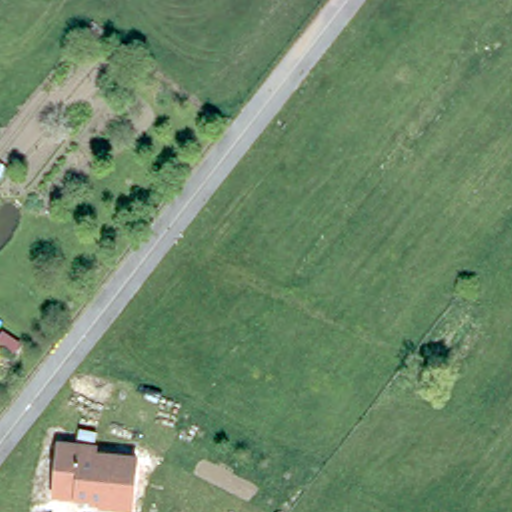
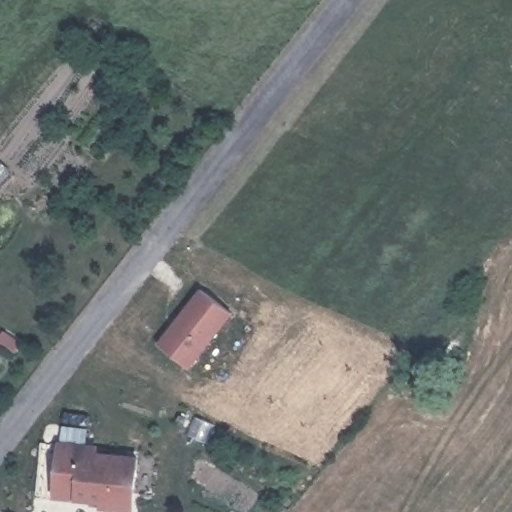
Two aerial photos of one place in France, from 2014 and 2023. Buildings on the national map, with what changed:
new [(154,345),(197,290),(229,316),(187,369),(154,345)]
unchanged [(57,440),(98,445),(100,455),(137,457),(134,508),(94,508),(92,502),(52,497),(57,440)]

